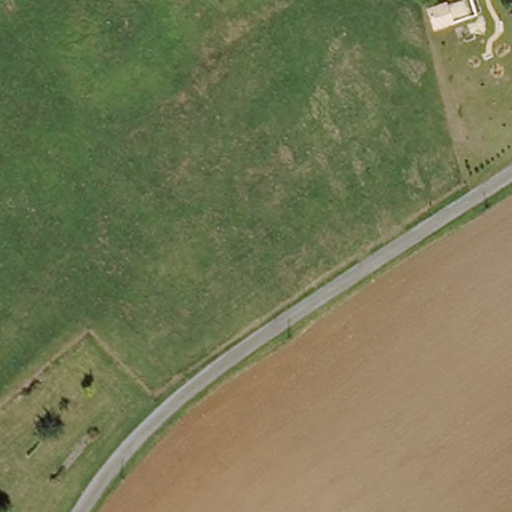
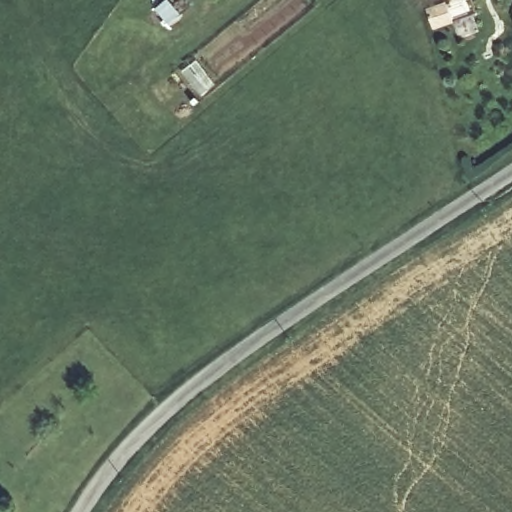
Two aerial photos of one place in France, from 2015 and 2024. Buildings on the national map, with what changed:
unchanged [(436,35),(432,19),(447,14),(451,29),(436,35)]

